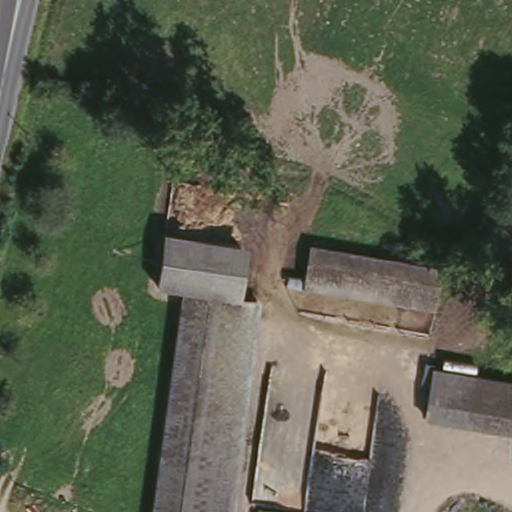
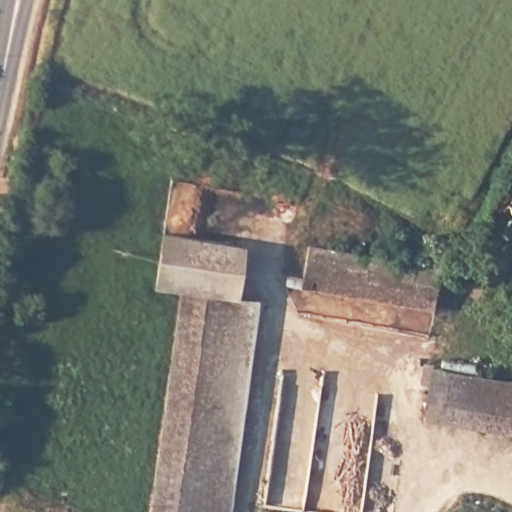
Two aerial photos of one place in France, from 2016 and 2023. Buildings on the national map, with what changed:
unchanged [(154,290),(160,237),(238,246),(233,298),(177,292),(154,290)]
unchanged [(444,267),(438,307),(304,285),(311,245),(444,267)]
unchanged [(233,298),(255,302),(231,512),(155,512),(177,292),(233,298)]
unchanged [(512,382),(512,433),(424,418),(434,368),(512,382)]
unchanged [(283,512),(283,510),(302,512),(283,512)]

